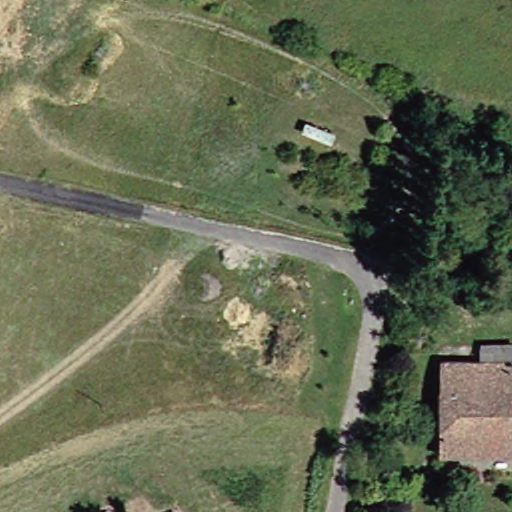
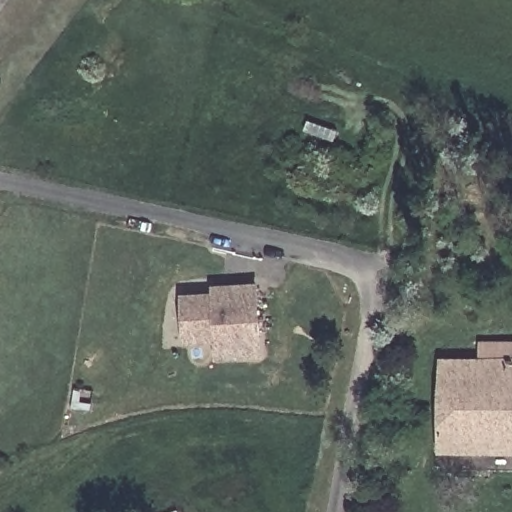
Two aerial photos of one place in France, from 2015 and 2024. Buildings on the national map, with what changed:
new [(263,356),(216,360),(215,342),(184,344),(181,294),(212,293),(211,286),(258,282),(263,356)]
unchanged [(433,357),(467,359),(467,333),(512,336),(512,451),(433,448),(433,357)]
unchanged [(171,509),(172,512),(164,512),(171,509)]

